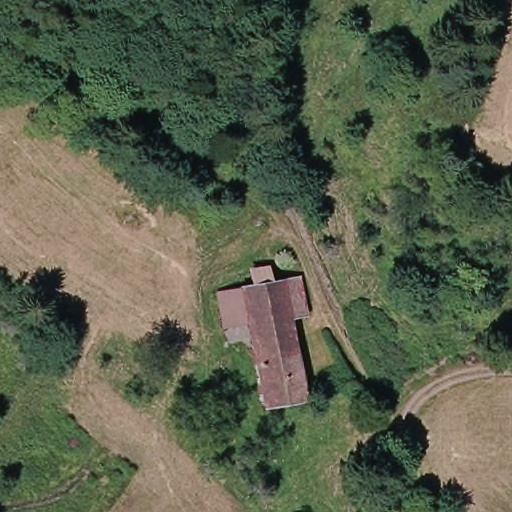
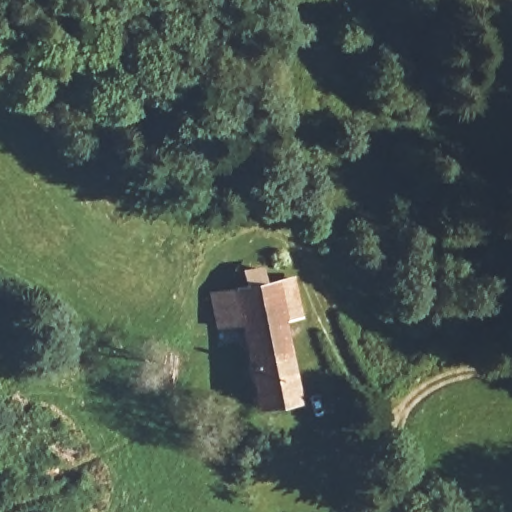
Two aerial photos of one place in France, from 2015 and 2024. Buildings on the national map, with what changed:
unchanged [(300,311),(277,313),(296,403),(258,410),(236,326),(215,330),(207,290),(289,277),(300,311)]

